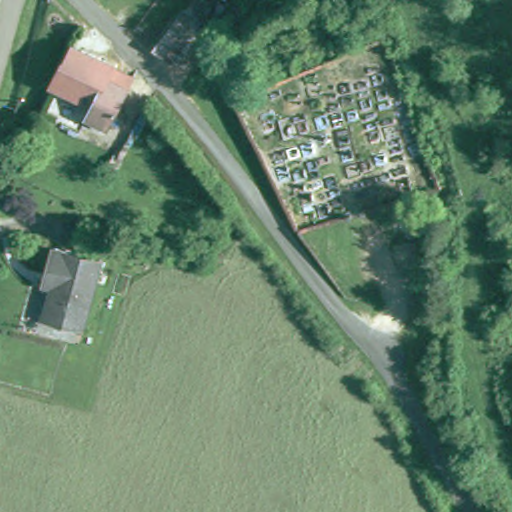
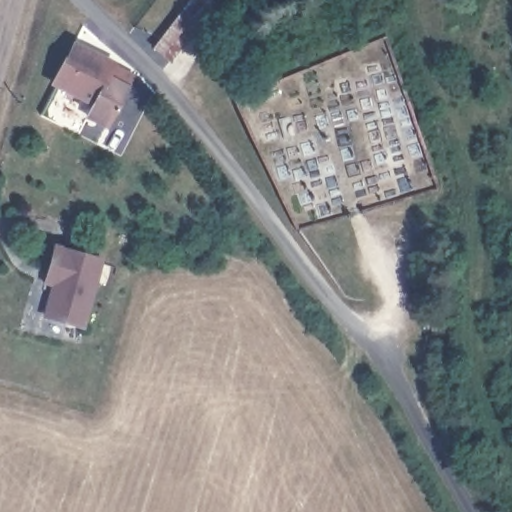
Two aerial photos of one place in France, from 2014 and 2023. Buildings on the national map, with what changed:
unchanged [(177,57),(161,44),(189,7),(205,20),(177,57)]
unchanged [(92,117),(98,105),(59,84),(80,46),(118,66),(112,78),(133,90),(115,128),(92,117)]
unchanged [(104,267),(86,334),(50,323),(59,292),(50,290),(53,277),(60,255),(104,267)]

